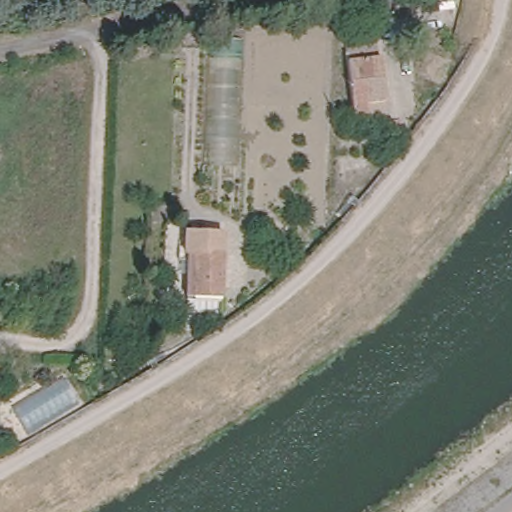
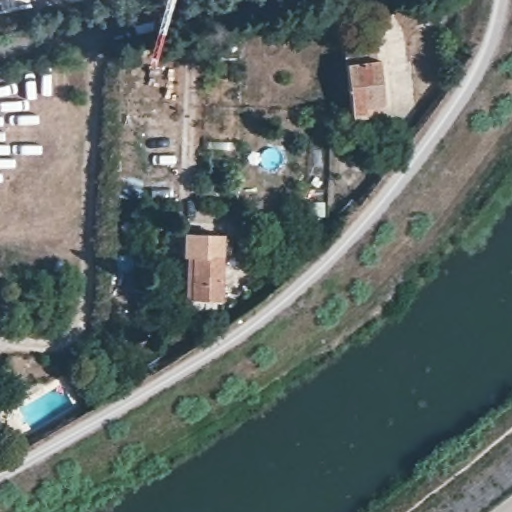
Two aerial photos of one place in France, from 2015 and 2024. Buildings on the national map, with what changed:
unchanged [(383,59),(389,103),(357,107),(351,64),(383,59)]
unchanged [(227,238),(226,302),(197,301),(198,259),(189,259),(190,237),(227,238)]
unchanged [(64,378),(81,403),(28,435),(13,404),(64,378)]

